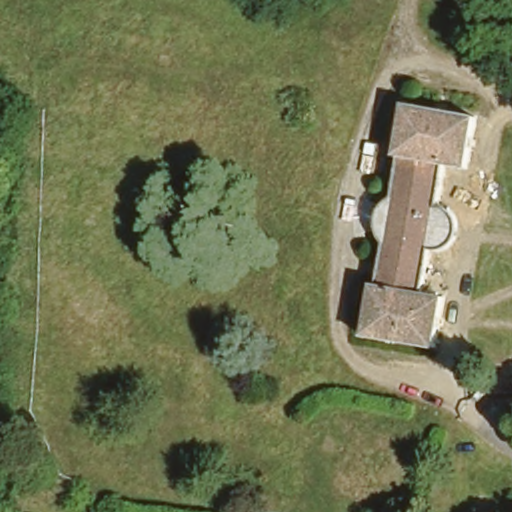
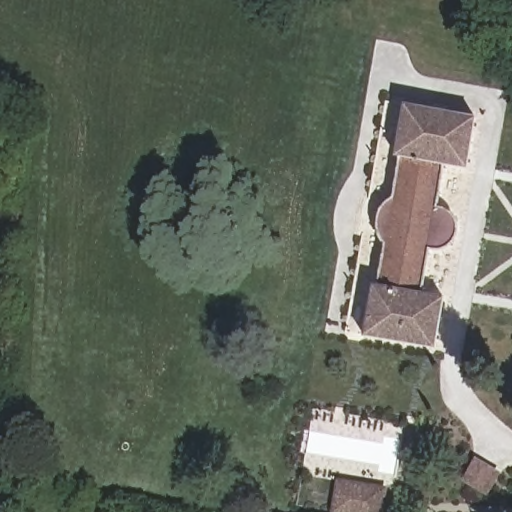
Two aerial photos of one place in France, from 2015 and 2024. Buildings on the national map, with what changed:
unchanged [(362,328),(370,273),(375,272),(382,241),(379,220),(380,205),(386,196),(392,187),(398,147),(395,146),(403,95),(476,108),(465,160),(443,155),(435,192),(451,199),(458,211),(459,226),(455,236),(446,245),(436,249),(427,249),(420,287),(440,289),(431,341),(362,328)]
new [(388,486),(383,512),(331,512),(337,478),(388,486)]

